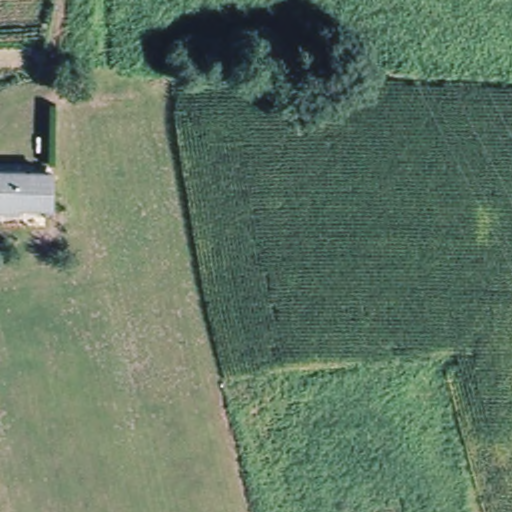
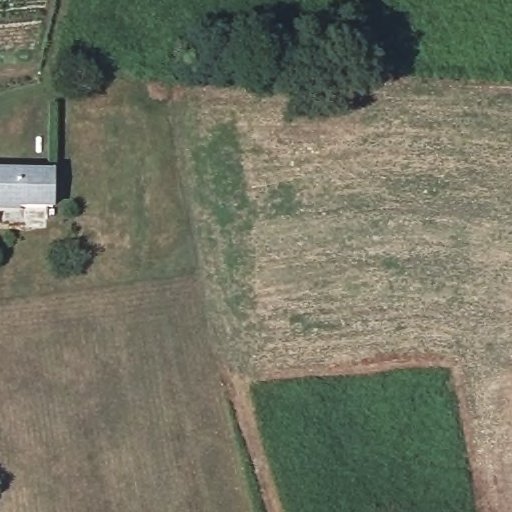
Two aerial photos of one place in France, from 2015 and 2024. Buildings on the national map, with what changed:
unchanged [(48,174),(47,207),(0,207),(0,174),(48,174)]

